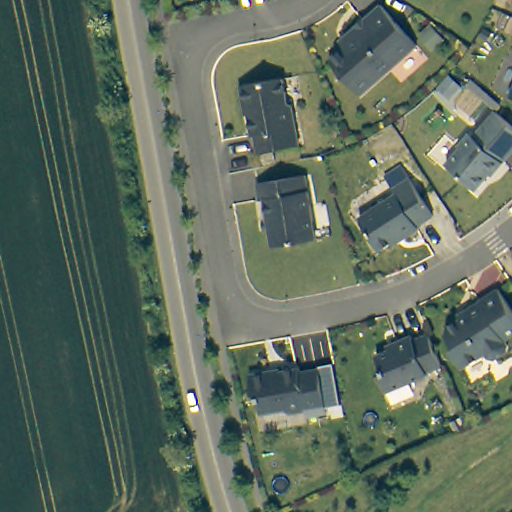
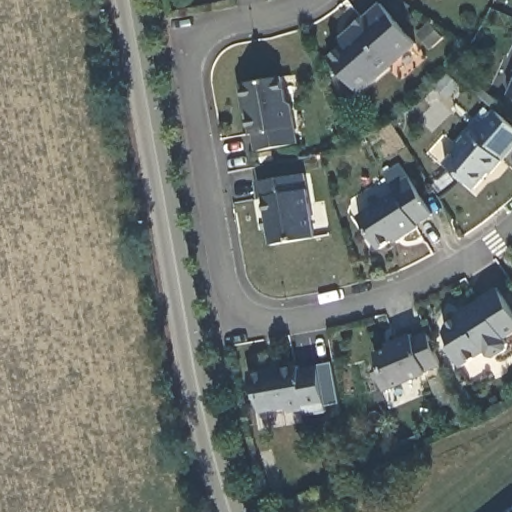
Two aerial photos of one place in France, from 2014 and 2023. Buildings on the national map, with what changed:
unchanged [(418,46),(360,95),(330,59),(345,46),(340,40),(350,31),(381,5),(418,46)]
unchanged [(286,74),(290,97),(294,100),(301,140),(259,147),(257,130),(255,130),(250,98),(245,95),(243,84),(246,80),(286,74)]
unchanged [(511,96),(512,94),(512,96),(511,96)]
unchanged [(474,188),(445,162),(459,146),(458,145),(469,132),(474,134),(497,108),(512,122),(512,150),(474,188)]
unchanged [(301,173),(315,237),(270,245),(262,199),(257,200),(254,183),(301,173)]
unchanged [(432,217),(417,228),(418,231),(404,239),(402,236),(379,251),(360,219),(395,195),(392,190),(409,180),(432,217)]
unchanged [(467,311),(500,290),(512,309),(512,338),(507,341),(510,345),(510,351),(498,358),(492,358),(488,353),(464,369),(454,354),(456,346),(447,335),(449,328),(469,316),(467,311)]
unchanged [(428,367),(429,369),(388,387),(380,368),(383,363),(378,350),(396,343),(395,338),(413,330),(416,336),(431,329),(444,361),(428,367)]
unchanged [(268,369),(268,372),(297,367),(297,371),(318,367),(325,412),(307,416),(306,411),(288,414),(283,408),(260,411),(256,391),(251,391),(248,373),(268,369)]

